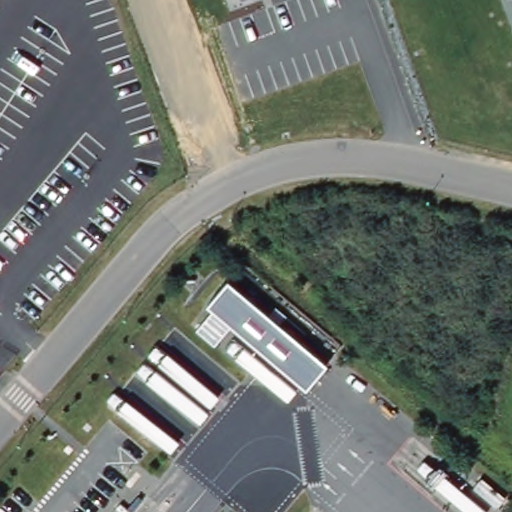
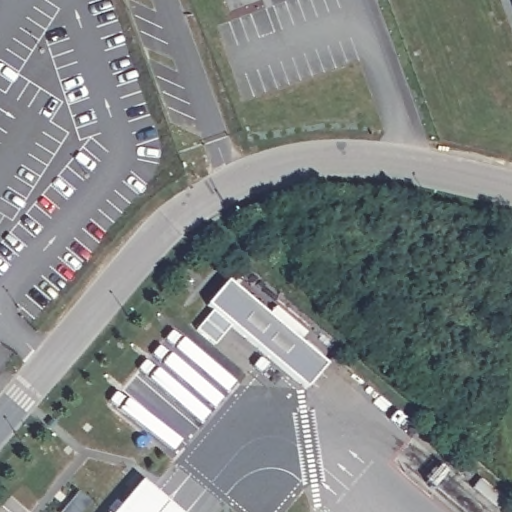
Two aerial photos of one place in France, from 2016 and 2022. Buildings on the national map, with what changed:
unchanged [(328,362),(307,387),(209,303),(229,280),(328,362)]
new [(181,512),(114,512),(141,478),(181,512)]

